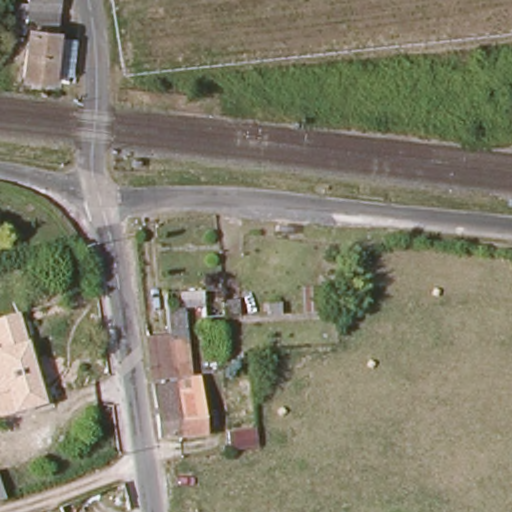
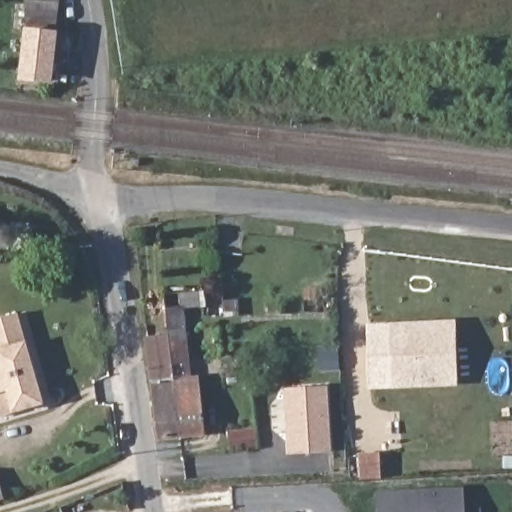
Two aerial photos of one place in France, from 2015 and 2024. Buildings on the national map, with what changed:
unchanged [(36,24),(29,23),(34,5),(67,12),(56,80),(27,76),(36,24)]
unchanged [(196,297),(196,308),(182,309),(189,379),(197,379),(202,435),(181,436),(171,335),(168,298),(196,297)]
unchanged [(45,405),(0,416),(0,319),(21,314),(45,405)]
new [(454,320),(454,340),(388,343),(388,323),(454,320)]
unchanged [(171,335),(181,436),(159,438),(148,336),(171,335)]
new [(454,340),(456,382),(392,387),(388,343),(454,340)]
new [(327,386),(332,450),(286,453),(282,388),(327,386)]
unchanged [(224,432),(229,432),(250,430),(251,444),(225,447),(224,432)]
new [(378,451),(380,477),(361,478),(359,452),(378,451)]
unchanged [(6,500),(0,502),(0,478),(6,500)]
new [(464,512),(377,512),(376,492),(463,487),(464,512)]

